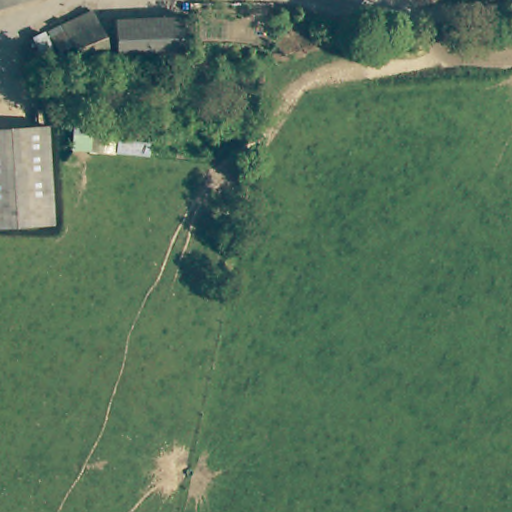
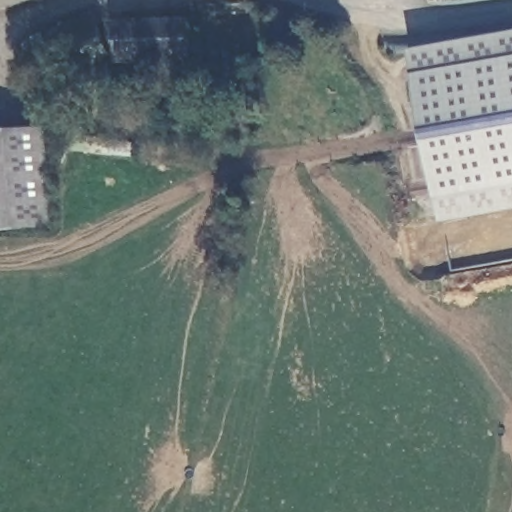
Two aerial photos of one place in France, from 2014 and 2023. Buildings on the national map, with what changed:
unchanged [(0,8),(0,0),(29,0),(0,8)]
unchanged [(95,57),(66,69),(58,67),(56,57),(60,57),(52,25),(81,16),(95,57)]
unchanged [(192,60),(120,60),(120,21),(192,21),(192,60)]
new [(512,210),(440,222),(410,51),(512,32),(512,210)]
unchanged [(53,227),(0,230),(0,130),(14,130),(48,127),(48,134),(53,227)]

